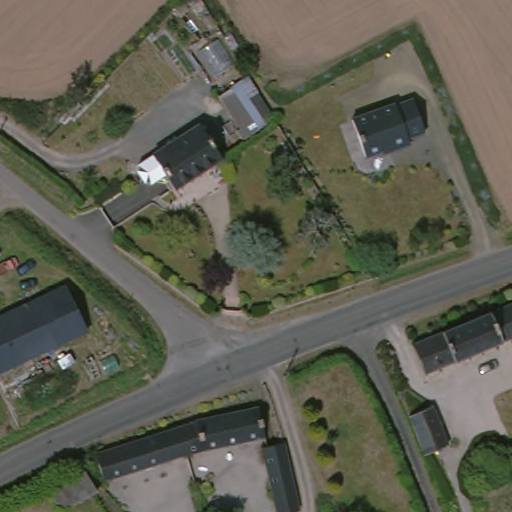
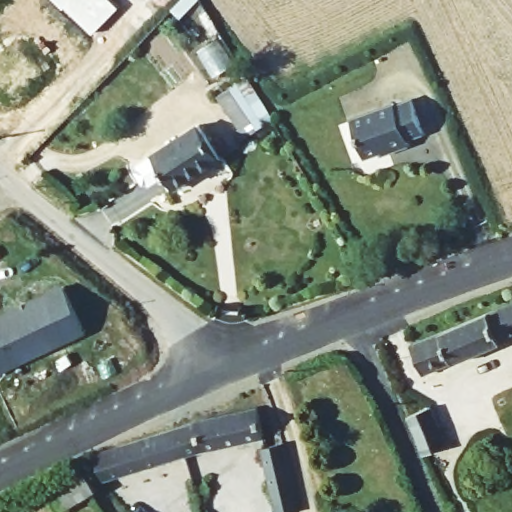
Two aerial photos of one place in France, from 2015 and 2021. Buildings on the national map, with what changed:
new [(89,35),(61,9),(59,10),(48,0),(106,0),(115,9),(89,35)]
unchanged [(245,141),(216,96),(247,76),(275,121),(245,141)]
unchanged [(396,106),(397,108),(414,101),(425,135),(408,141),(410,147),(395,152),(390,154),(389,150),(365,159),(355,128),(352,120),(396,106)]
unchanged [(220,151),(174,192),(164,179),(150,189),(144,189),(136,179),(137,174),(152,163),(150,161),(194,123),(220,151)]
unchanged [(64,290),(84,339),(0,372),(0,316),(64,290)]
unchanged [(512,335),(423,378),(410,349),(512,301),(512,335)]
unchanged [(448,443),(426,454),(408,412),(429,404),(448,443)]
unchanged [(256,408),(265,436),(192,456),(104,484),(92,457),(177,429),(256,408)]
unchanged [(296,512),(281,512),(263,452),(277,448),(296,512)]
unchanged [(84,476),(97,494),(72,512),(55,512),(47,501),(84,476)]

